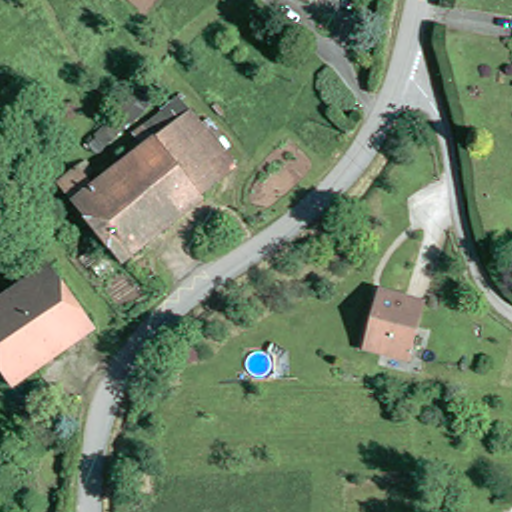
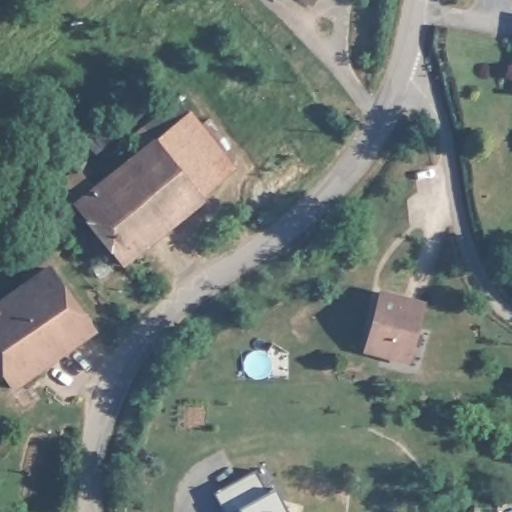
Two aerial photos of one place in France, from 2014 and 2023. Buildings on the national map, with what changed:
unchanged [(299,0),(320,0),(315,9),(299,0)]
unchanged [(193,114),(223,152),(209,164),(221,179),(203,193),(161,140),(193,114)]
unchanged [(203,193),(208,199),(123,266),(77,208),(161,140),(203,193)]
unchanged [(75,285),(93,309),(85,314),(97,331),(17,389),(0,365),(0,312),(54,271),(68,289),(75,285)]
unchanged [(387,297),(428,308),(414,364),(376,354),(371,353),(378,328),(387,297)]
new [(269,492),(276,489),(288,512),(241,512),(238,507),(229,512),(226,512),(214,490),(257,469),(269,492)]

